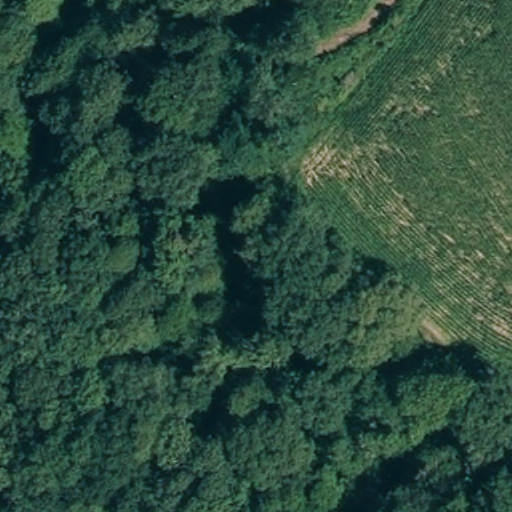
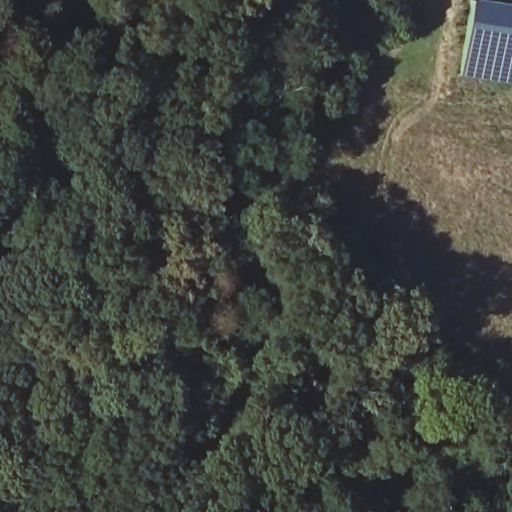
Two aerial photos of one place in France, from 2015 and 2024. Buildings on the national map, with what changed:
new [(512,5),(512,84),(461,77),(471,0),(478,0),(512,5)]

